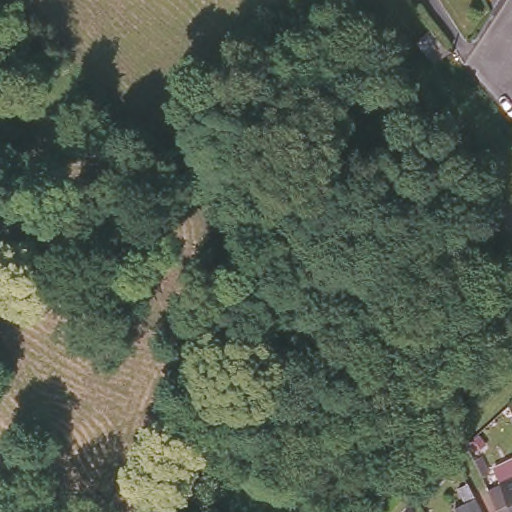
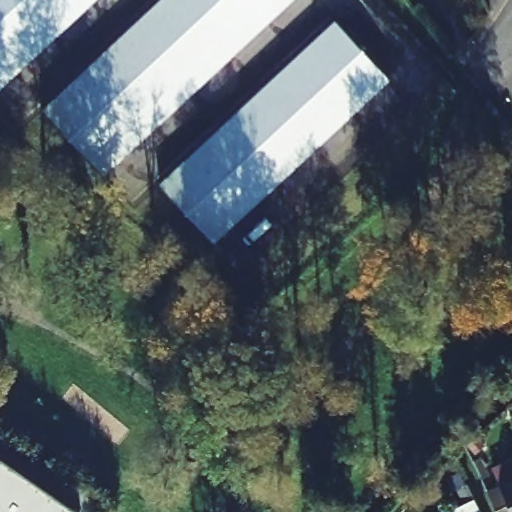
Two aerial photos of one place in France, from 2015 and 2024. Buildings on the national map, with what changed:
new [(0,89),(0,0),(95,0),(0,89)]
new [(103,174),(42,109),(159,0),(292,0),(103,174)]
new [(391,78),(214,242),(159,182),(336,19),(391,78)]
new [(74,512),(0,512),(0,459),(74,511),(74,512)]
unchanged [(500,482),(512,477),(512,506),(500,482)]

